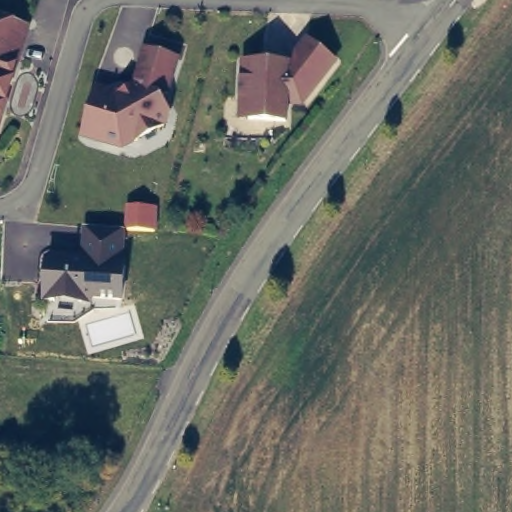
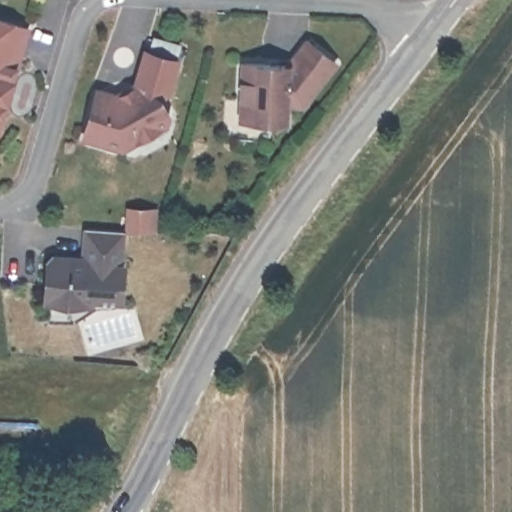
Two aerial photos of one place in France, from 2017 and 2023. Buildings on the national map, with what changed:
unchanged [(31,24),(19,67),(13,66),(3,104),(7,105),(0,129),(0,15),(31,24)]
unchanged [(291,61),(307,38),(338,62),(301,107),(286,107),(286,122),(238,120),(239,58),(291,61)]
unchanged [(114,92),(133,85),(144,47),(179,59),(171,94),(161,98),(170,112),(168,127),(146,131),(121,148),(79,135),(93,85),(114,92)]
unchanged [(124,230),(122,261),(126,261),(123,303),(90,302),(89,306),(40,302),(44,253),(78,255),(82,228),(124,230)]

